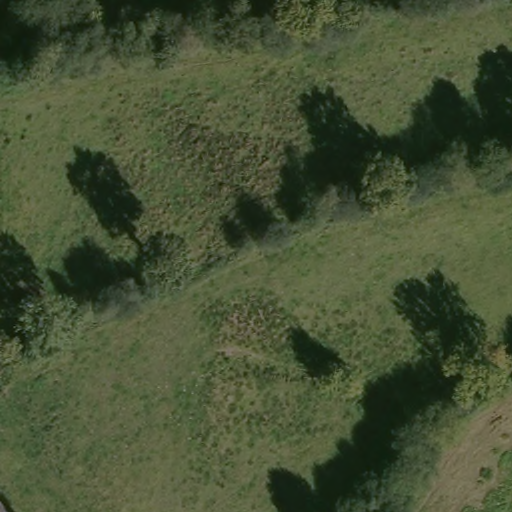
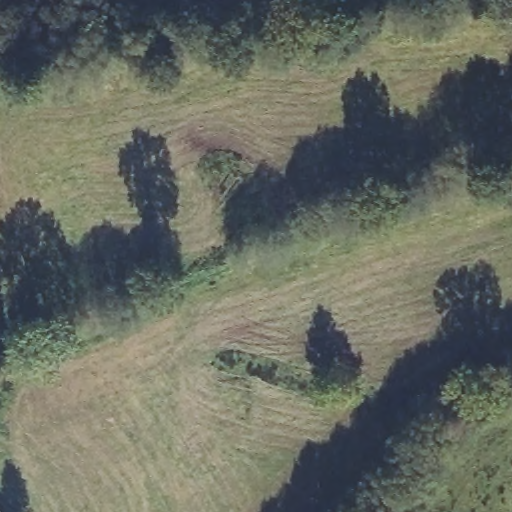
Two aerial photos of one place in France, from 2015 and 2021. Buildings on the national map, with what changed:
unchanged [(0,512),(0,508),(3,512),(0,512)]

